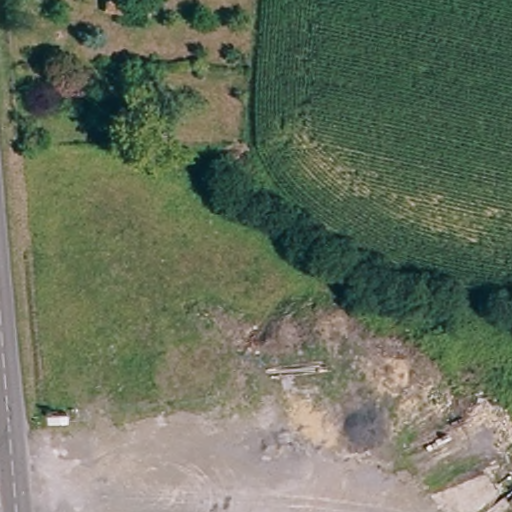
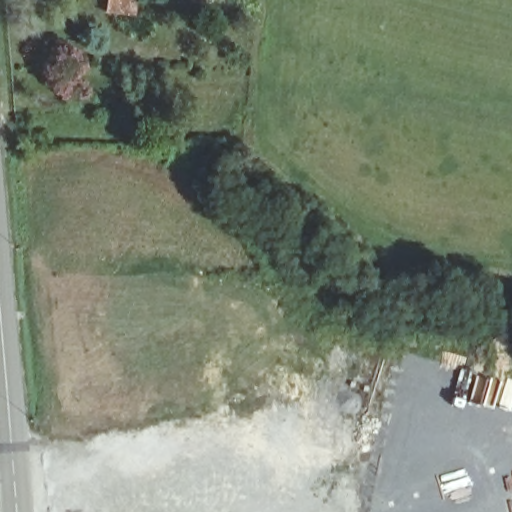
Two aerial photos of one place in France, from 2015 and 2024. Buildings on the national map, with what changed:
unchanged [(129,7),(127,16),(97,10),(98,0),(145,0),(144,7),(129,7)]

